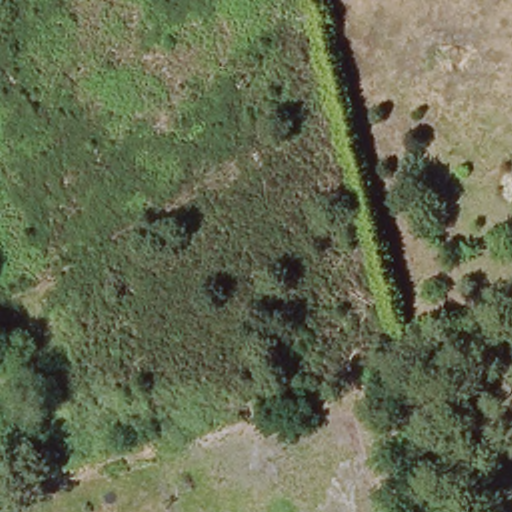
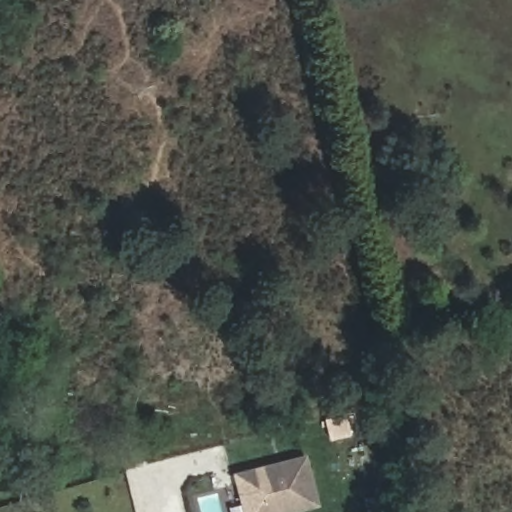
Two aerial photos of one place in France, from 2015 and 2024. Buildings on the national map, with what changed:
new [(244,512),(234,472),(307,453),(320,505),(294,512),(244,512)]

